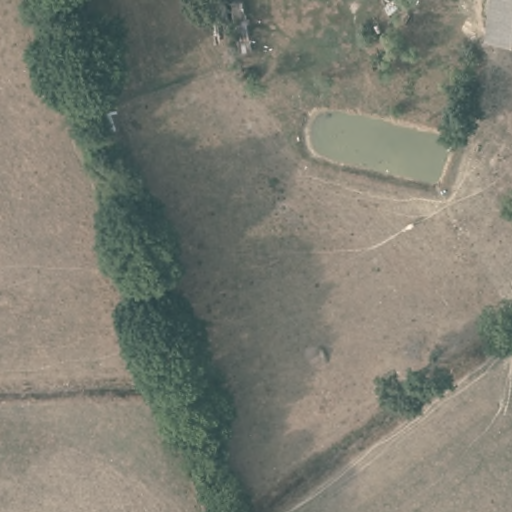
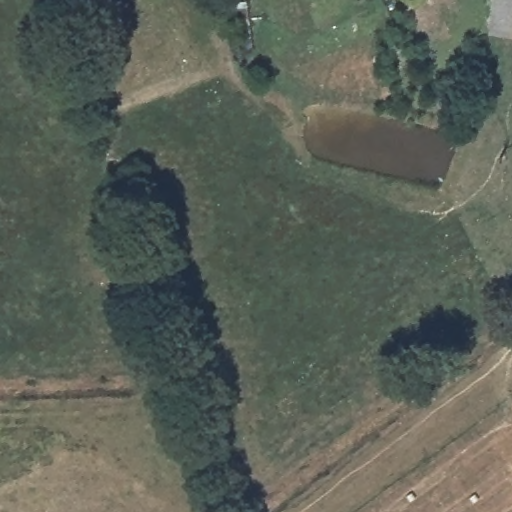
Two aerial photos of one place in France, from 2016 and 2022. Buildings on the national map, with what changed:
unchanged [(488,37),(491,0),(512,0),(512,40),(488,37)]

